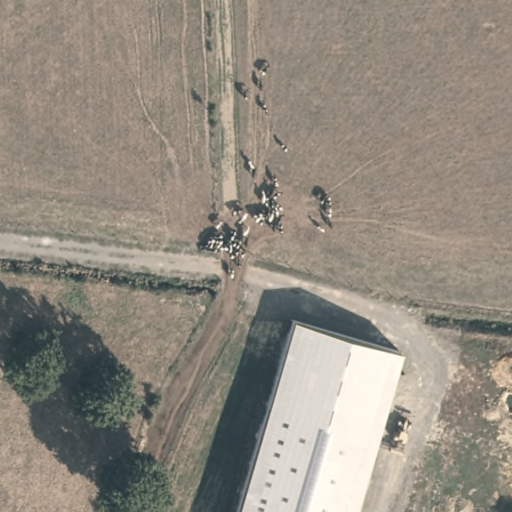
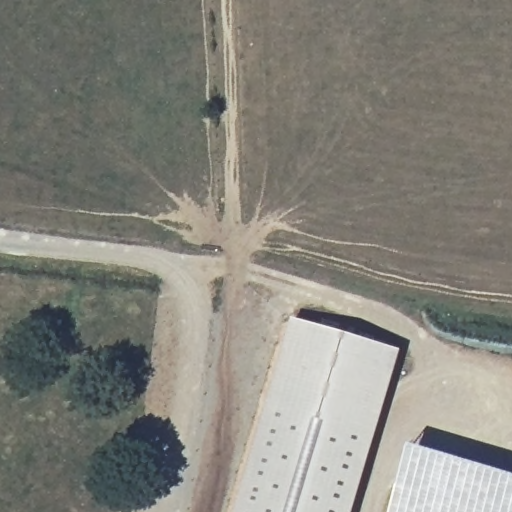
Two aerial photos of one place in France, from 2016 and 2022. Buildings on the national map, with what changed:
unchanged [(354,512),(236,512),(293,318),(402,351),(354,512)]
new [(411,446),(512,476),(512,512),(391,512),(411,446)]

